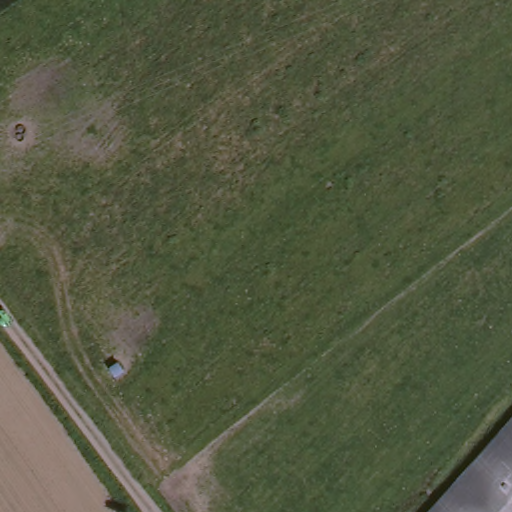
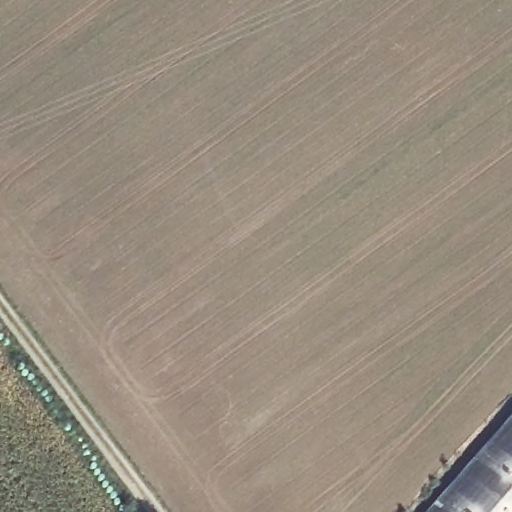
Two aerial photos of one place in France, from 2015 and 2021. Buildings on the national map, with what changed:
unchanged [(429,512),(512,421),(512,512),(429,512)]

